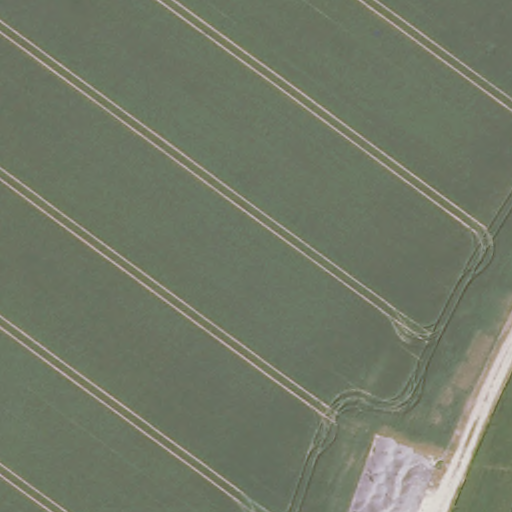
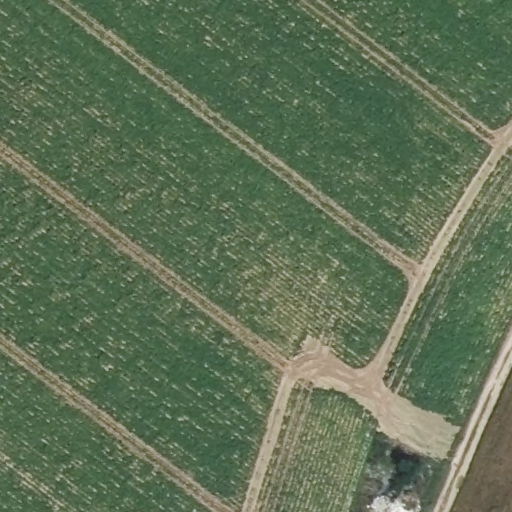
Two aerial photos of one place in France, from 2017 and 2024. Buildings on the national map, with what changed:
[]

